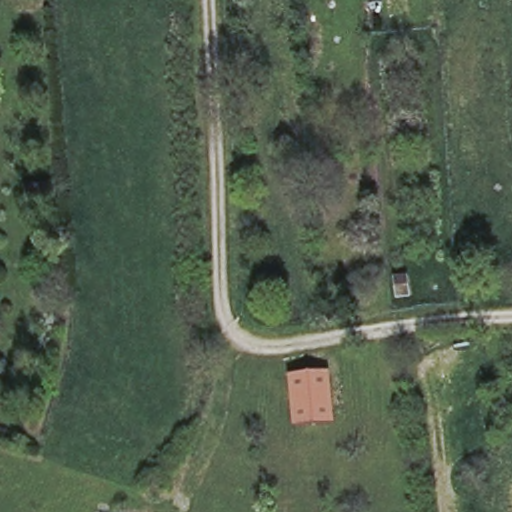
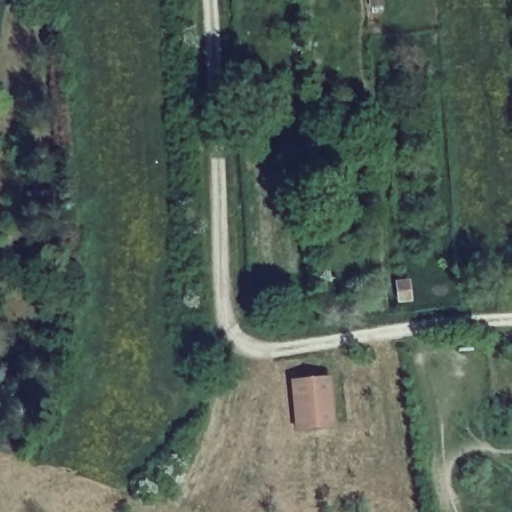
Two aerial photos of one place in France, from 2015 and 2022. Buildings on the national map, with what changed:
unchanged [(412,277),(415,300),(395,302),(394,281),(412,277)]
unchanged [(345,374),(351,417),(335,418),(337,430),(296,435),(294,380),(345,374)]

